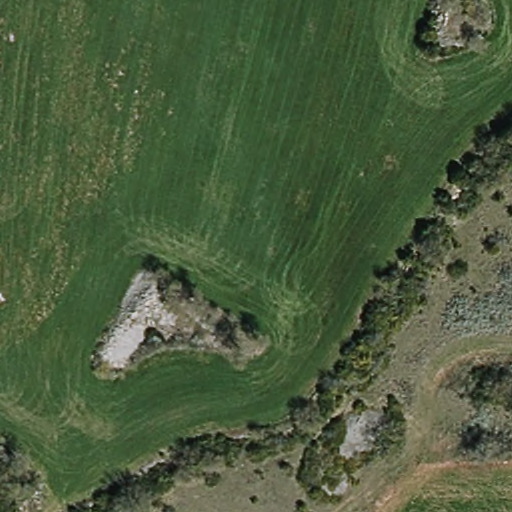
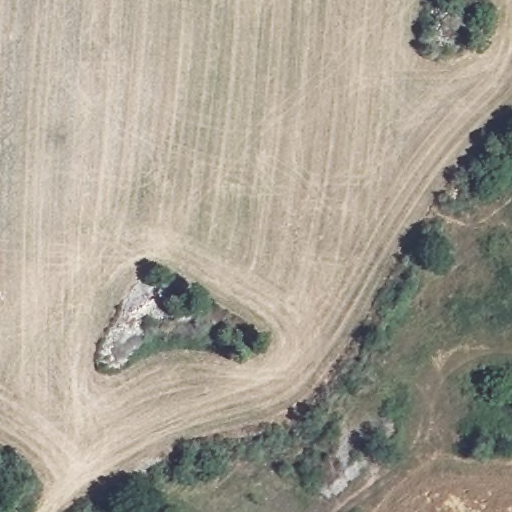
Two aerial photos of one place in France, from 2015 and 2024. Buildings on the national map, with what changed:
[]

